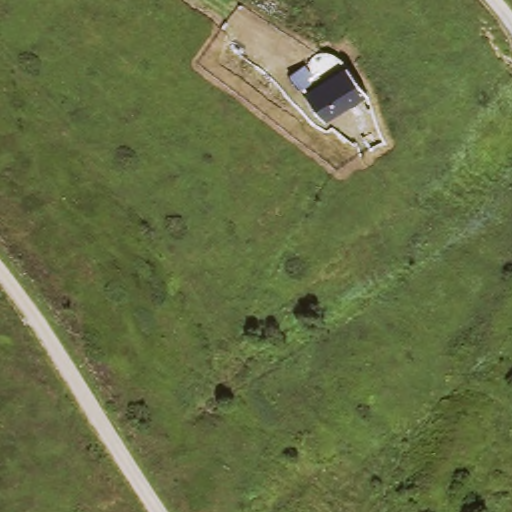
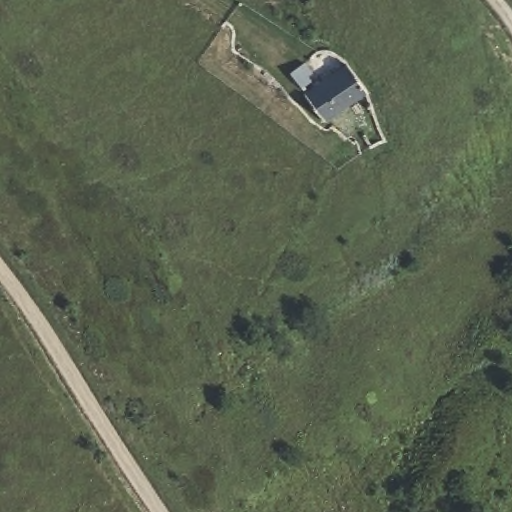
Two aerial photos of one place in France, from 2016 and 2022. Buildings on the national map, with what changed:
unchanged [(303,90),(346,60),(368,90),(324,119),(303,90)]

